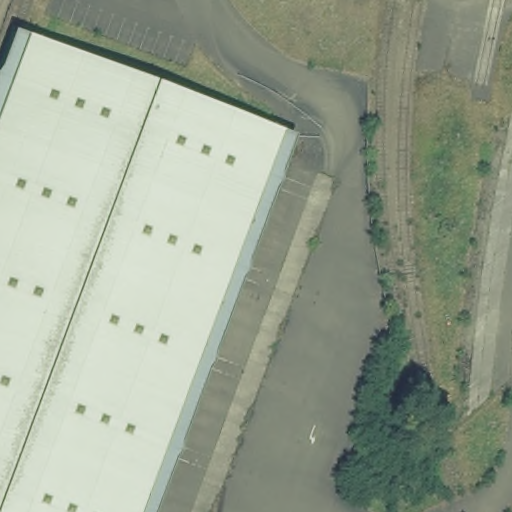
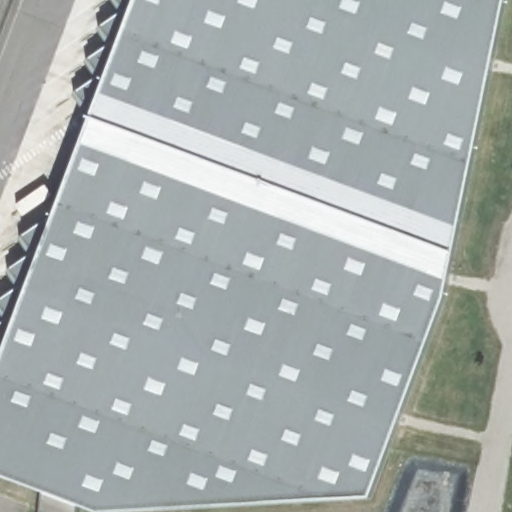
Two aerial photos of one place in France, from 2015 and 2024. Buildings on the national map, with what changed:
new [(4,319),(0,313),(0,300),(21,285),(16,287),(7,272),(33,252),(28,254),(18,239),(57,214),(95,110),(87,107),(82,109),(72,95),(99,75),(94,77),(84,62),(112,42),(107,44),(97,29),(124,10),(119,11),(111,0),(506,0),(445,300),(371,498),(144,512),(95,512),(81,507),(80,512),(41,512),(43,492),(0,476),(0,324),(9,317),(4,319)]
demolished [(154,512),(0,512),(0,130),(34,40),(295,137),(154,512)]

